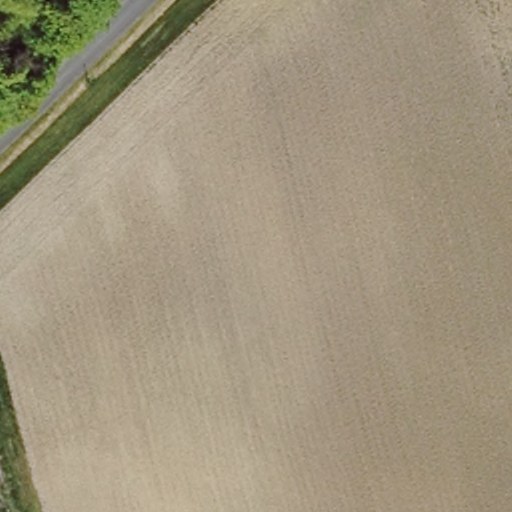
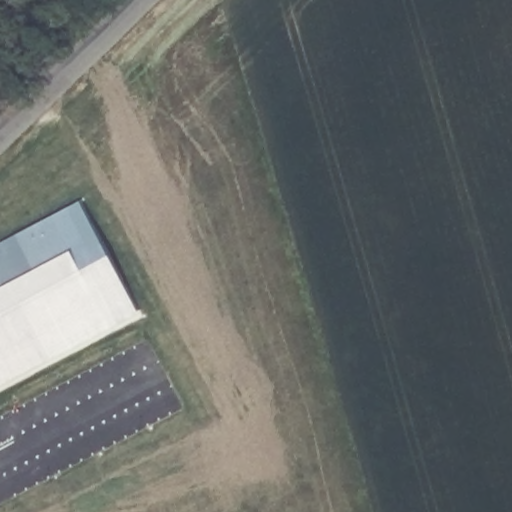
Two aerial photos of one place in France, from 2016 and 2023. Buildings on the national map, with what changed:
new [(79,212),(130,311),(0,380),(0,253),(79,212)]

